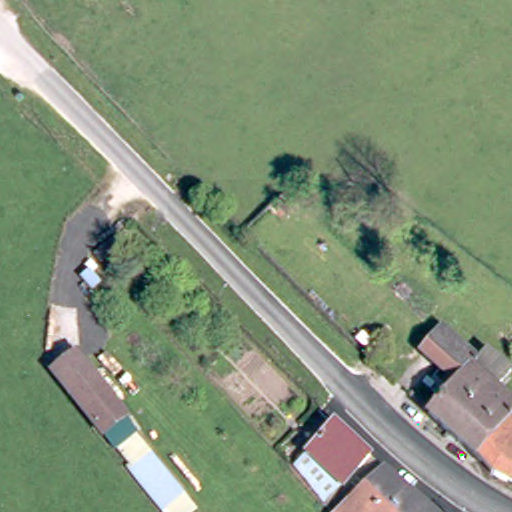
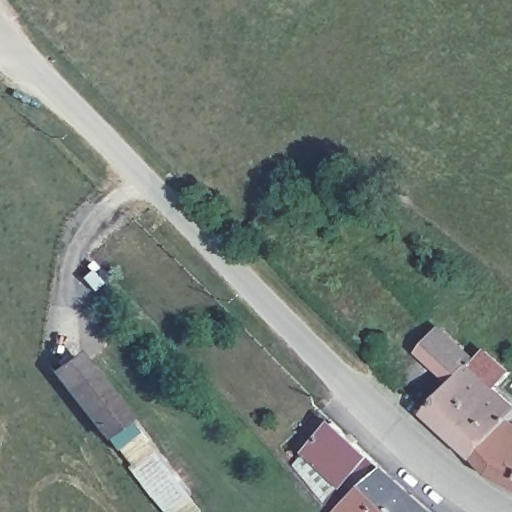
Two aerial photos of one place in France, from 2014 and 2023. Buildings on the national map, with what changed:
unchanged [(442,327),(480,358),(475,364),(512,397),(512,414),(510,417),(476,452),(458,434),(439,417),(428,408),(458,380),(421,348),(439,330),(442,327)]
unchanged [(123,401),(98,421),(61,374),(86,354),(123,401)]
unchanged [(512,418),(512,485),(500,479),(476,452),(510,417),(512,418)]
unchanged [(296,464),(338,420),(382,464),(338,507),(296,464)]
unchanged [(197,507),(192,512),(165,512),(113,447),(135,429),(197,507)]
unchanged [(338,507),(382,464),(437,512),(339,512),(336,509),(338,507)]

